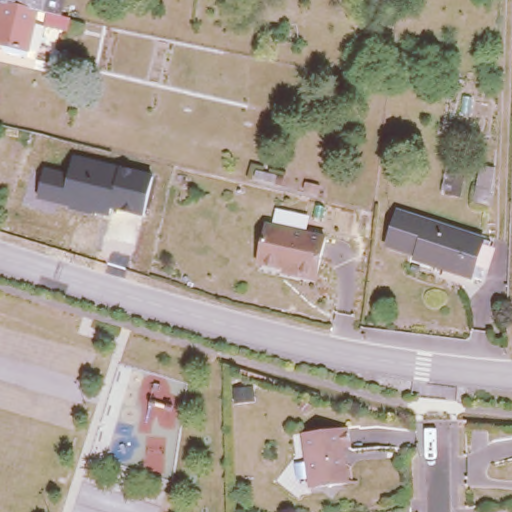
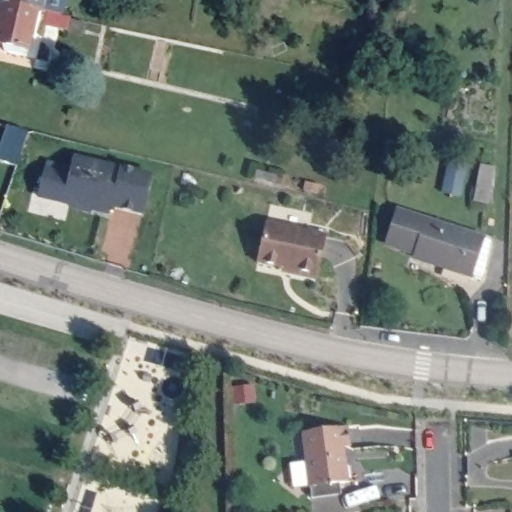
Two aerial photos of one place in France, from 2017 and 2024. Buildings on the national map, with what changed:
unchanged [(26,51),(6,46),(8,40),(0,38),(0,2),(1,0),(18,0),(37,5),(26,51)]
unchanged [(43,19),(46,6),(37,5),(18,0),(63,0),(60,10),(69,12),(66,24),(43,19)]
unchanged [(69,171),(74,155),(154,176),(146,217),(111,210),(110,217),(38,198),(44,168),(69,171)]
unchanged [(465,166),(461,196),(442,193),(447,162),(465,166)]
unchanged [(493,166),(488,204),(473,201),(479,164),(493,166)]
unchanged [(276,175),(274,182),(253,177),(254,169),(276,175)]
unchanged [(484,235),(477,275),(409,252),(410,248),(381,239),(392,205),(484,235)]
unchanged [(318,231),(308,273),(284,268),(285,264),(260,258),(269,219),(318,231)]
unchanged [(306,480),(298,431),(343,424),(346,443),(340,444),(345,479),(326,482),(306,485),(306,480)]

